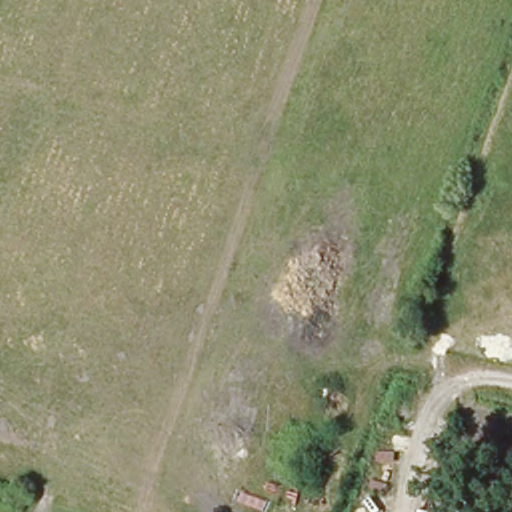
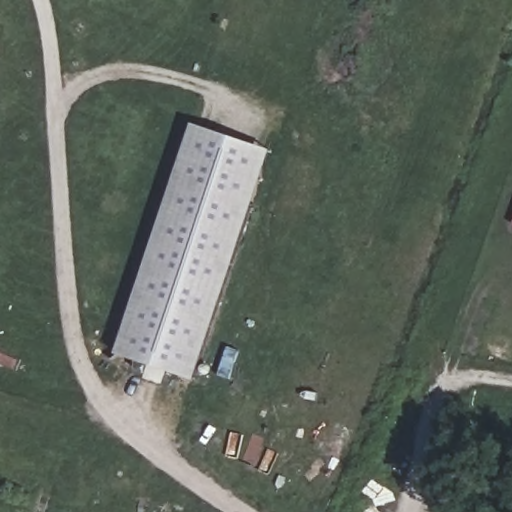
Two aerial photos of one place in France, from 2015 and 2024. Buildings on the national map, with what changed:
new [(195,126),(272,152),(195,380),(118,354),(195,126)]

